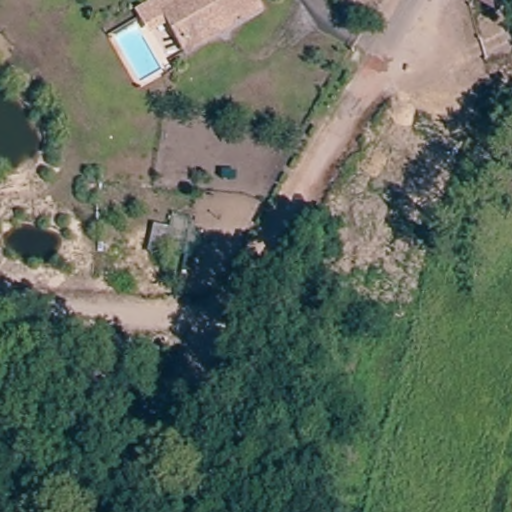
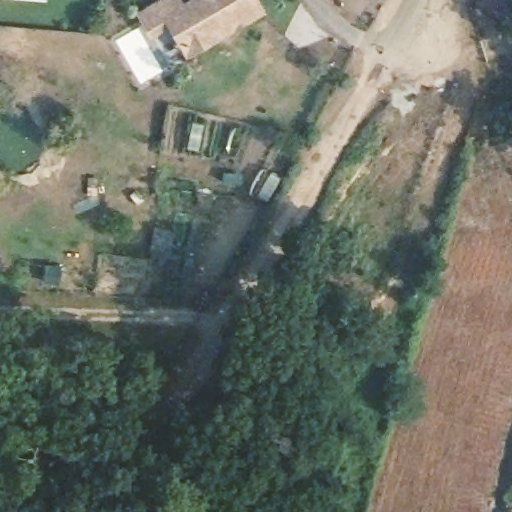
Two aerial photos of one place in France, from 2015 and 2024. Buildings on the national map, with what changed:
unchanged [(166,56),(150,28),(177,13),(184,14),(175,0),(233,0),(245,22),(225,34),(216,38),(208,43),(170,64),(166,56)]
unchanged [(500,14),(474,0),(509,0),(500,14)]
unchanged [(171,227),(165,257),(147,253),(154,223),(171,227)]

